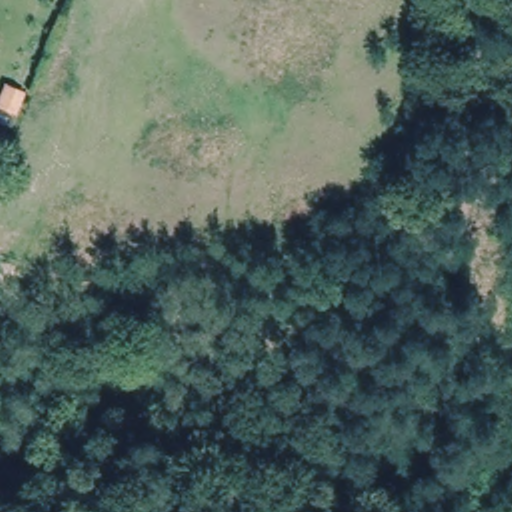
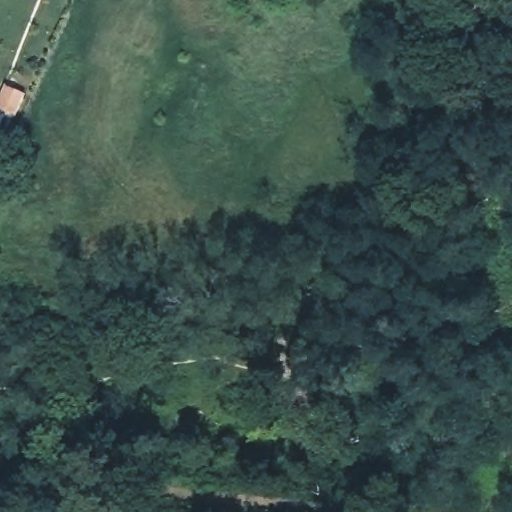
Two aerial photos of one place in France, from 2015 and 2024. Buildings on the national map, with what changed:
unchanged [(26,91),(20,108),(4,103),(10,85),(26,91)]

